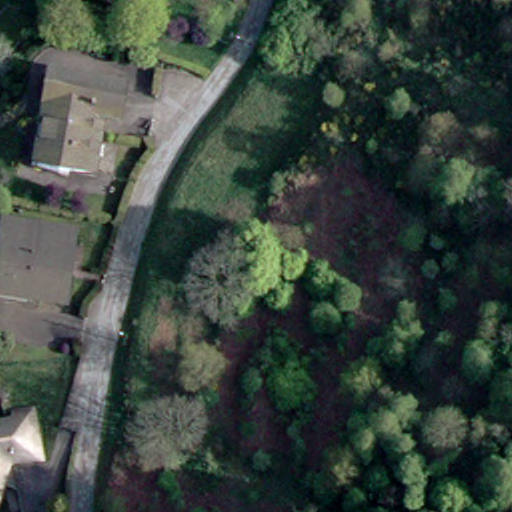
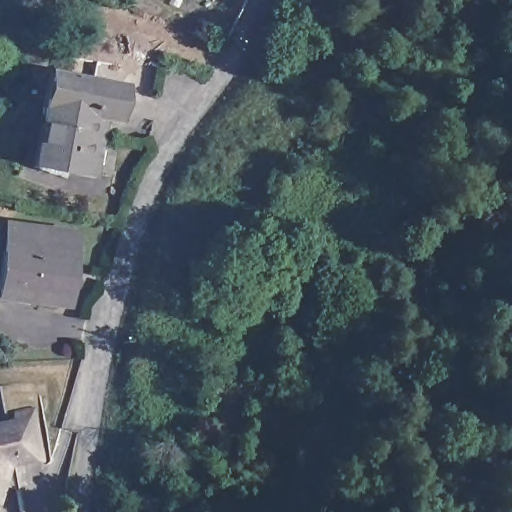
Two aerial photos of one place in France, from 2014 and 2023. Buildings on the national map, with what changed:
unchanged [(95,136),(91,176),(58,172),(60,156),(43,155),(47,124),(42,124),(47,77),(119,85),(115,120),(93,118),(91,135),(95,136)]
unchanged [(65,236),(57,302),(0,294),(0,262),(5,227),(65,236)]
unchanged [(1,428),(13,427),(12,419),(35,417),(42,455),(19,458),(30,491),(6,482),(0,504),(0,426),(1,428)]

